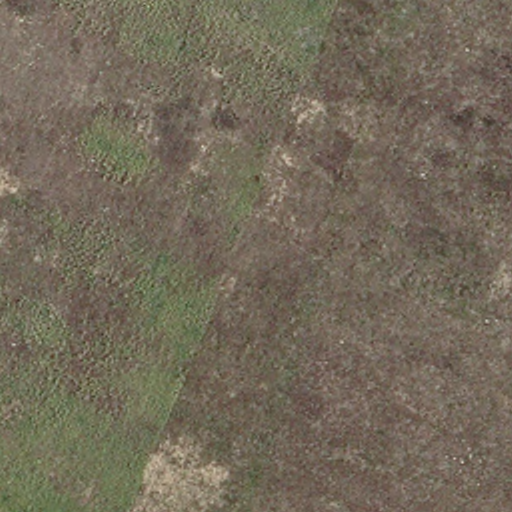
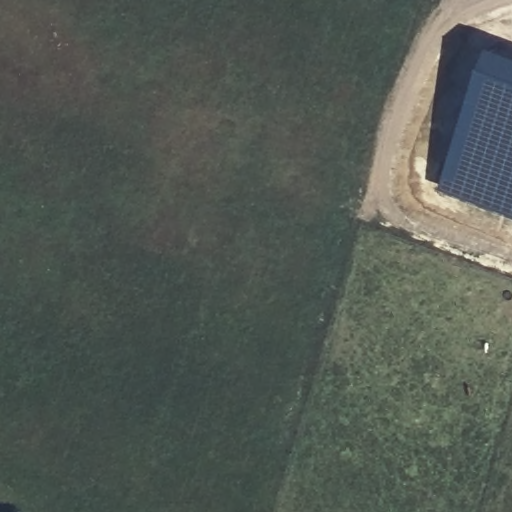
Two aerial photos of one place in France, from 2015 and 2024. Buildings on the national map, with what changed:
new [(492,45),(512,52),(512,215),(443,190),(492,45)]

